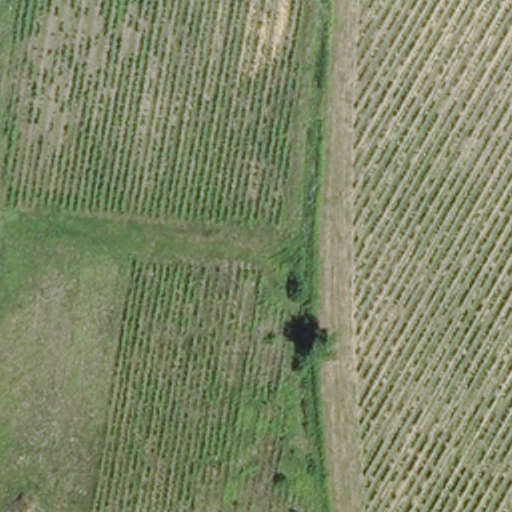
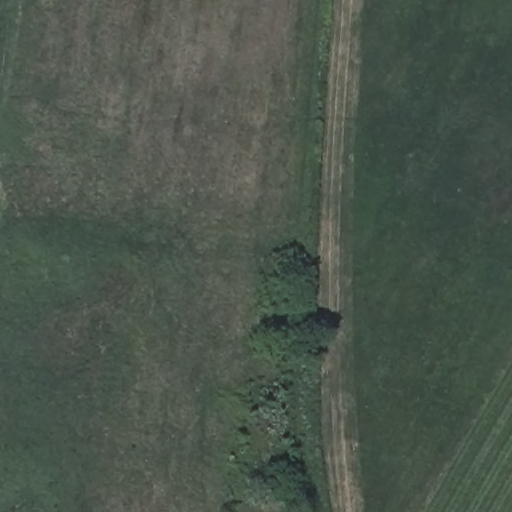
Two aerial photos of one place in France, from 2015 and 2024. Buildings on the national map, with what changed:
[]

